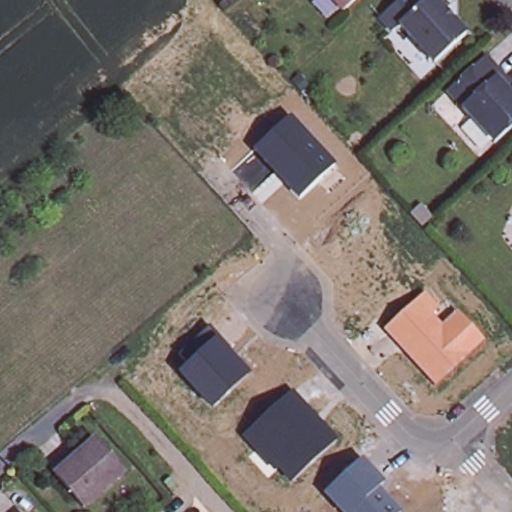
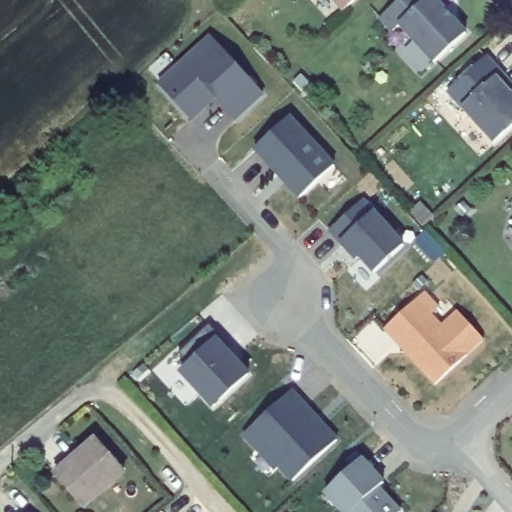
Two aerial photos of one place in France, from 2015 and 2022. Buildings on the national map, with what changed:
unchanged [(333,0),(360,0),(345,14),(333,0)]
unchanged [(396,0),(434,0),(463,34),(431,61),(398,24),(390,31),(378,16),(396,0)]
new [(156,83),(211,35),(265,97),(237,122),(217,100),(190,122),(156,83)]
unchanged [(503,73),(499,76),(512,91),(512,130),(496,145),(449,91),(488,56),(503,73)]
unchanged [(290,116),(335,165),(298,199),(255,151),(253,151),(290,116)]
new [(360,258),(355,262),(337,244),(327,234),(362,200),(376,212),(406,246),(375,276),(360,258)]
unchanged [(383,328),(424,292),(437,308),(430,313),(441,325),(456,311),(485,341),(434,386),(383,328)]
unchanged [(177,373),(187,363),(178,353),(210,327),(230,349),(228,352),(250,374),(212,409),(177,373)]
unchanged [(277,467),(272,471),(242,436),(293,392),(337,440),(290,483),(277,467)]
unchanged [(88,446),(117,478),(79,512),(76,512),(48,482),(88,446)]
unchanged [(325,493),(363,458),(386,483),(380,488),(401,512),(341,512),(325,493)]

